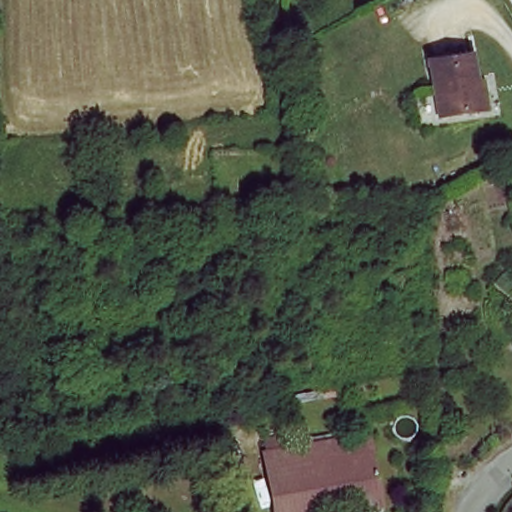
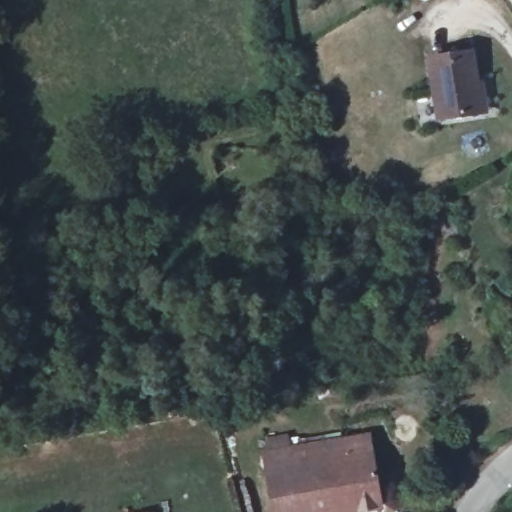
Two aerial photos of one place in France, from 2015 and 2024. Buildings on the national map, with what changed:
unchanged [(477,79),(483,79),(486,109),(438,114),(431,54),(473,49),(477,79)]
unchanged [(380,511),(371,512),(281,512),(279,500),(272,453),(370,436),(380,511)]

